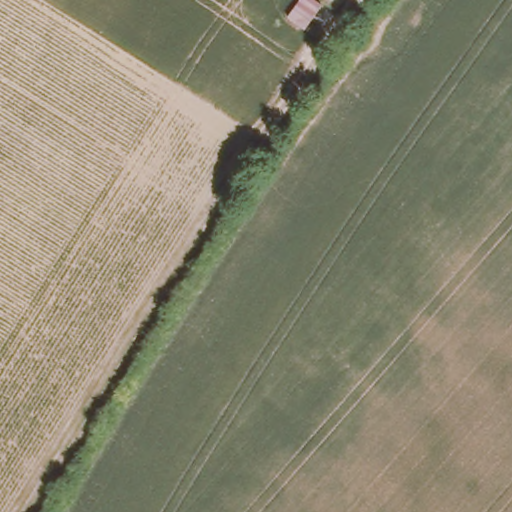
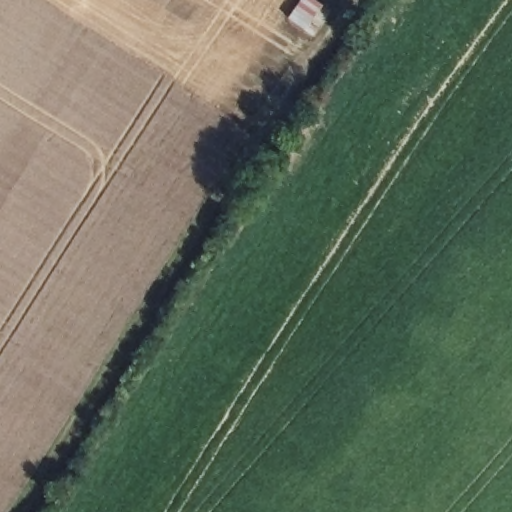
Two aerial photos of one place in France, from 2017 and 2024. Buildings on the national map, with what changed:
unchanged [(294,0),(318,0),(322,2),(304,29),(283,17),(294,0)]

